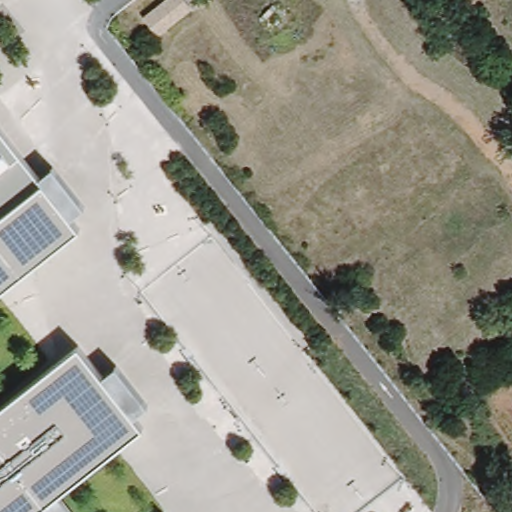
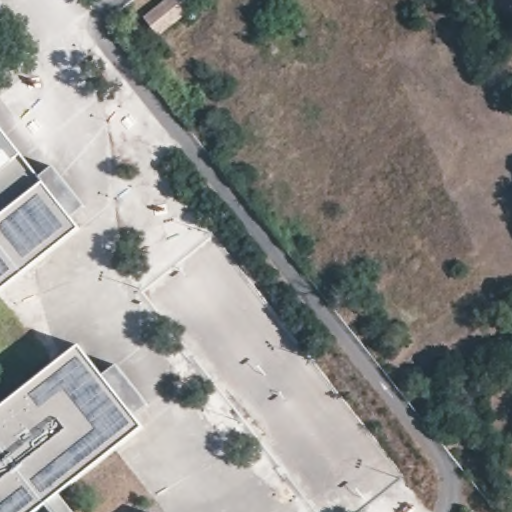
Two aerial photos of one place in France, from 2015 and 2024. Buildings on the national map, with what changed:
unchanged [(146,16),(167,0),(188,0),(195,9),(157,33),(146,16)]
unchanged [(40,180),(56,166),(86,205),(73,217),(82,229),(0,293),(0,125),(40,180)]
unchanged [(104,378),(120,365),(153,407),(140,419),(144,427),(38,512),(0,512),(0,409),(81,345),(104,378)]

